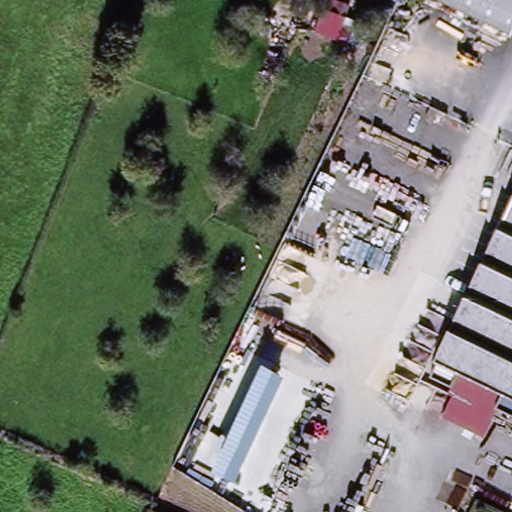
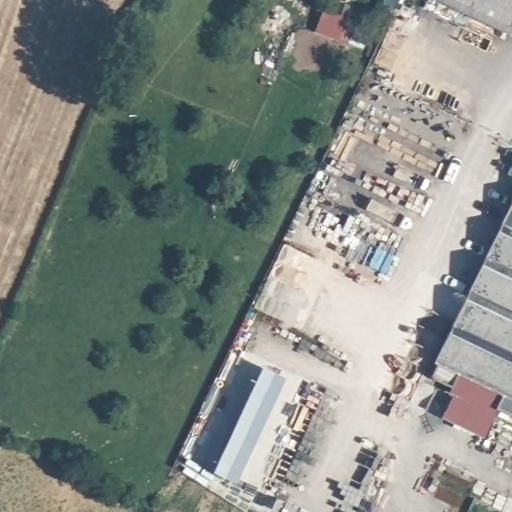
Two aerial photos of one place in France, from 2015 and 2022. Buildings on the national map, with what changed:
unchanged [(436,0),(512,0),(512,24),(506,36),(436,0)]
unchanged [(501,398),(458,376),(451,390),(430,379),(437,366),(432,363),(512,203),(512,420),(495,411),(501,398)]

